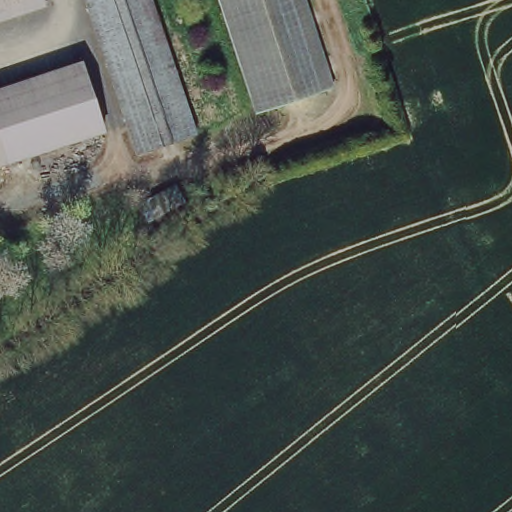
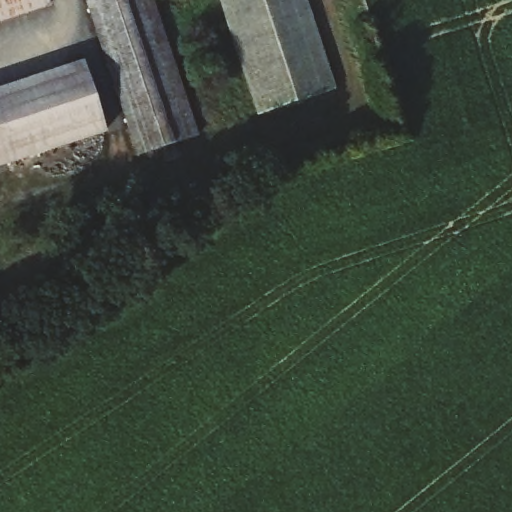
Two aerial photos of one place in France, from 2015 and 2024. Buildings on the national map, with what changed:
unchanged [(49,7),(0,23),(0,0),(46,0),(49,7)]
unchanged [(192,135),(132,155),(83,0),(149,0),(192,135)]
unchanged [(330,94),(259,117),(221,0),(299,0),(330,94)]
unchanged [(76,65),(97,133),(0,164),(0,90),(76,65)]

